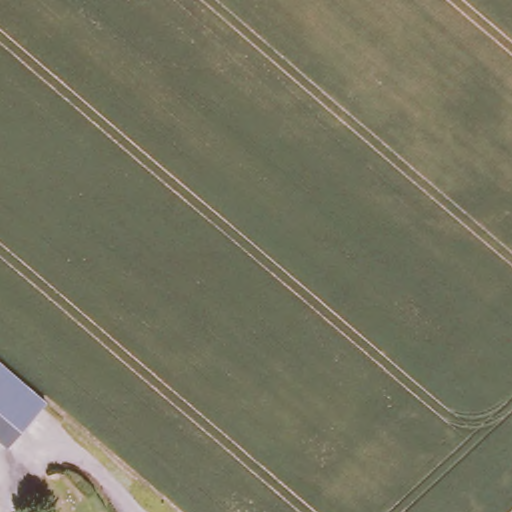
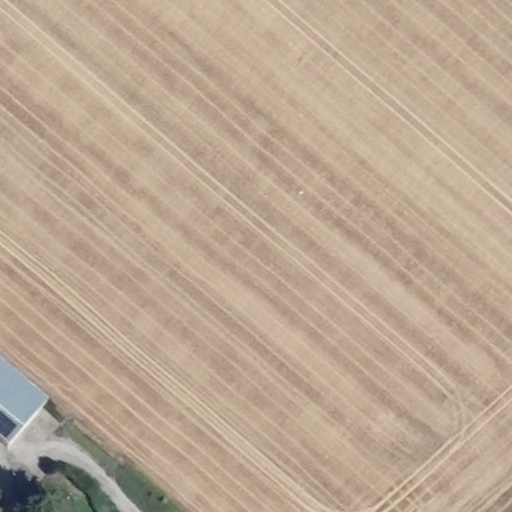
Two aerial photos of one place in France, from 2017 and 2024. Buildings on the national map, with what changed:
unchanged [(0,433),(0,355),(51,398),(12,443),(0,433)]

